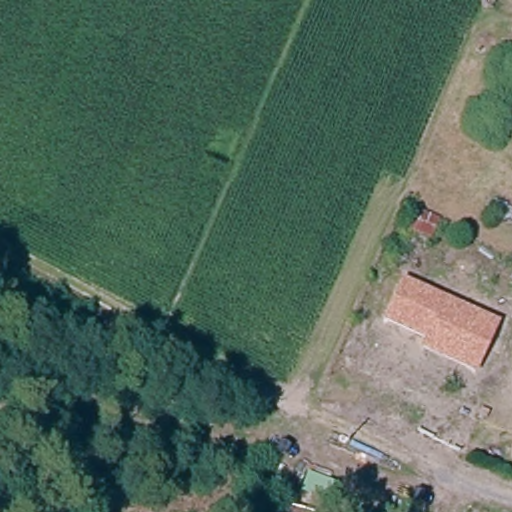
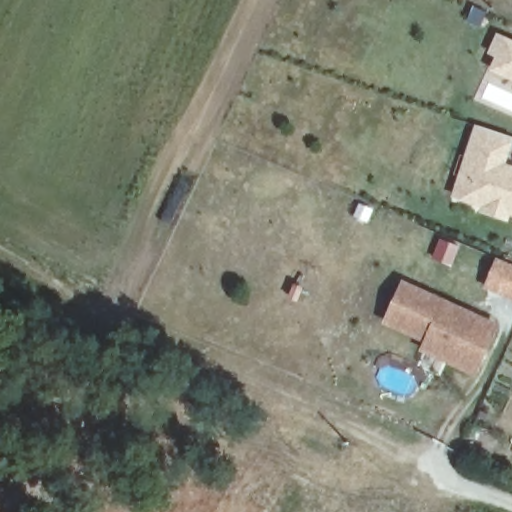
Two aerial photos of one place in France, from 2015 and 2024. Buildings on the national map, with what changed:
new [(512,81),(488,70),(494,57),(486,54),(496,33),(512,40),(512,81)]
new [(512,146),(506,164),(512,166),(512,216),(510,215),(507,222),(481,215),(483,209),(451,199),(475,126),(512,137),(512,146)]
new [(512,266),(512,298),(483,285),(495,258),(512,266)]
unchanged [(402,280),(500,324),(476,378),(419,354),(423,342),(382,325),(402,280)]
unchanged [(332,501),(329,512),(258,512),(267,483),(332,501)]

